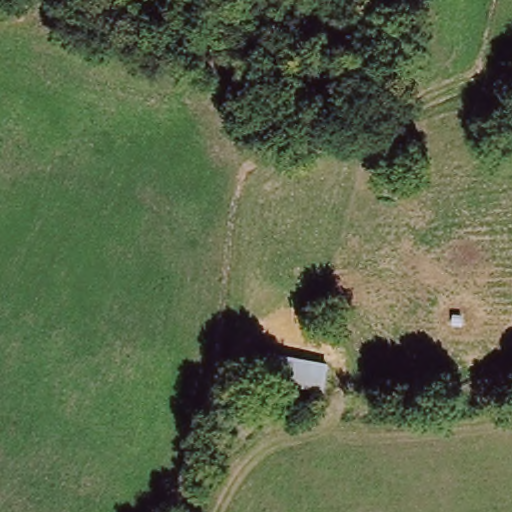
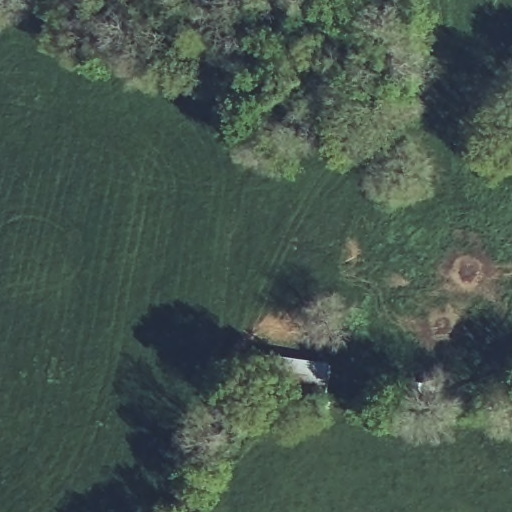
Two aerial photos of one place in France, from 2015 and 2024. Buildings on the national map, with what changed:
unchanged [(302,357),(297,385),(262,376),(265,351),(302,357)]

